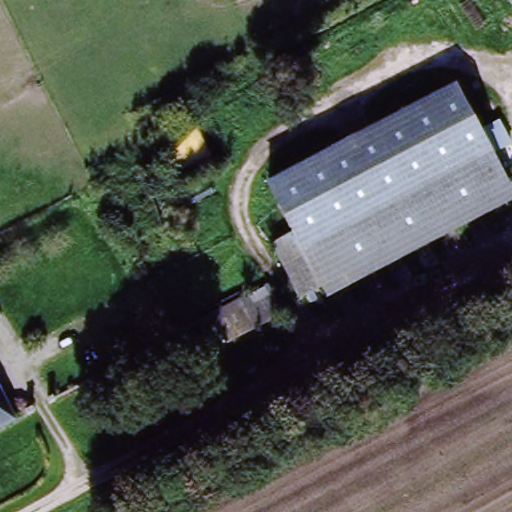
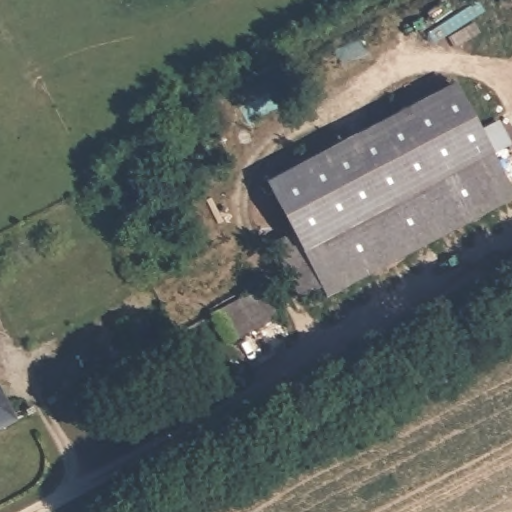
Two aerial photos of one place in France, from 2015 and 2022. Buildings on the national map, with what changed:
unchanged [(512,0),(512,6),(509,0),(512,0)]
unchanged [(324,264),(308,235),(296,242),(272,194),(459,94),(486,143),(502,171),(324,264)]
unchanged [(308,235),(324,264),(502,171),(512,189),(512,202),(304,308),(276,252),(296,242),(308,235)]
unchanged [(270,279),(285,310),(228,339),(212,310),(270,279)]
unchanged [(0,430),(0,387),(18,421),(0,430)]

